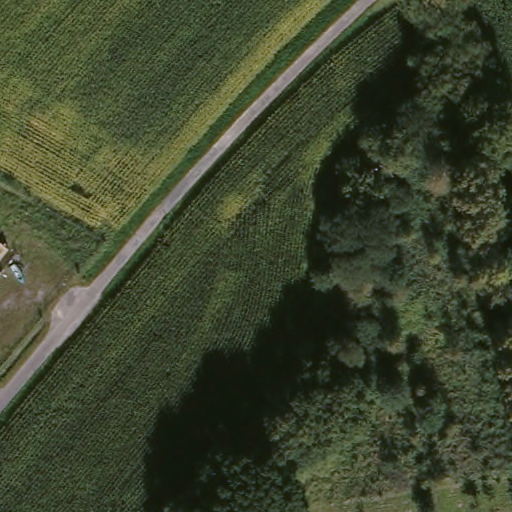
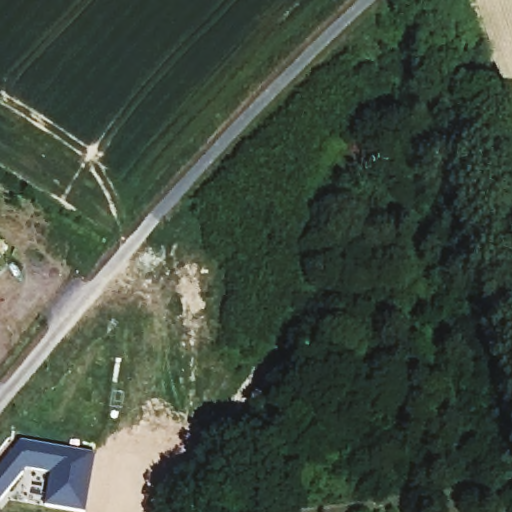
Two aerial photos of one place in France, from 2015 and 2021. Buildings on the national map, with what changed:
unchanged [(0,252),(0,247),(2,249),(0,252)]
new [(94,455),(84,512),(78,512),(43,506),(49,474),(25,470),(0,501),(0,467),(21,441),(94,455)]

